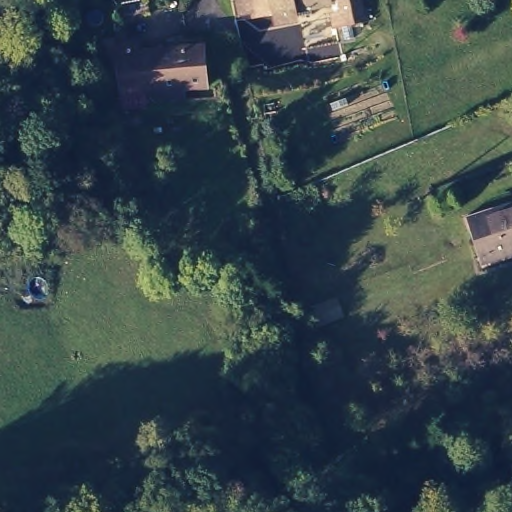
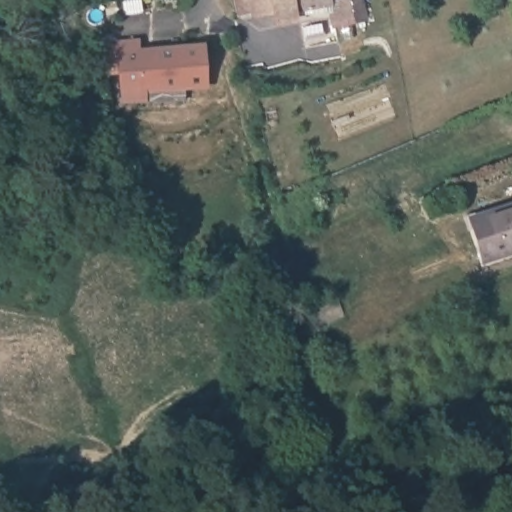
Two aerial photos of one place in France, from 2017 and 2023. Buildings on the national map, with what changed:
unchanged [(291,6),(255,12),(253,8),(240,11),(237,0),(327,0),(311,3),(312,10),(292,13),(291,6)]
unchanged [(340,6),(339,0),(362,0),(365,18),(335,24),(331,9),(340,6)]
unchanged [(113,36),(121,36),(121,33),(135,31),(142,31),(143,42),(208,36),(212,77),(190,79),(190,92),(127,93),(123,52),(115,53),(113,36)]
unchanged [(512,199),(512,247),(490,255),(480,225),(473,227),(469,213),(512,199)]

